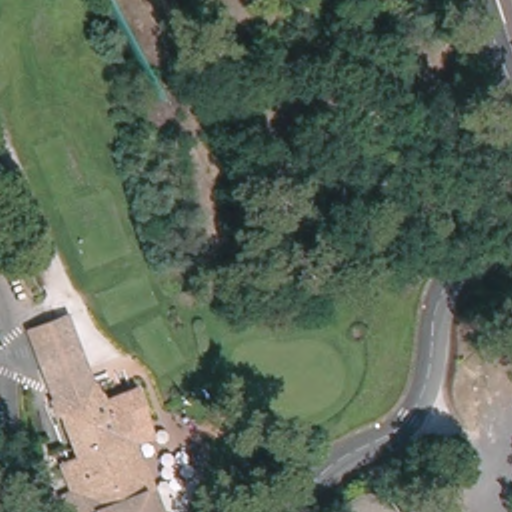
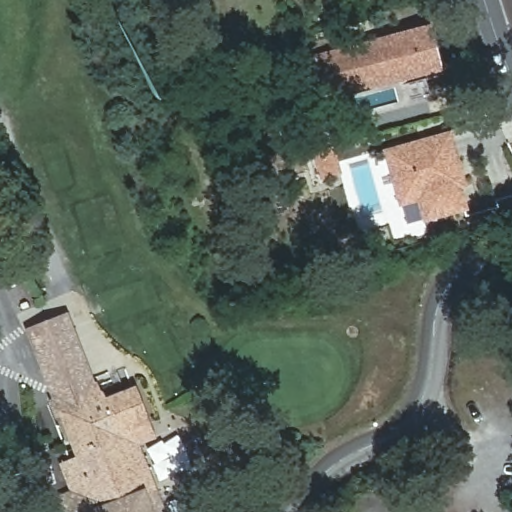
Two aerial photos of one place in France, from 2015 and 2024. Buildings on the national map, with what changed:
new [(317,55),(410,35),(418,34),(425,68),(418,70),(325,89),(317,55)]
new [(463,185),(458,185),(464,207),(405,220),(388,147),(451,133),(463,185)]
unchanged [(49,396),(27,332),(68,315),(94,380),(49,396)]
unchanged [(74,447),(61,411),(56,413),(52,402),(94,386),(97,395),(100,394),(102,399),(130,388),(144,422),(114,435),(133,485),(139,499),(105,512),(99,512),(91,491),(74,497),(63,465),(68,463),(63,451),(74,447)]
unchanged [(150,438),(136,444),(154,493),(139,499),(133,485),(114,435),(144,422),(150,438)]
unchanged [(60,501),(71,497),(72,500),(91,495),(98,512),(66,512),(60,501)]
unchanged [(164,512),(110,512),(156,495),(164,512)]

